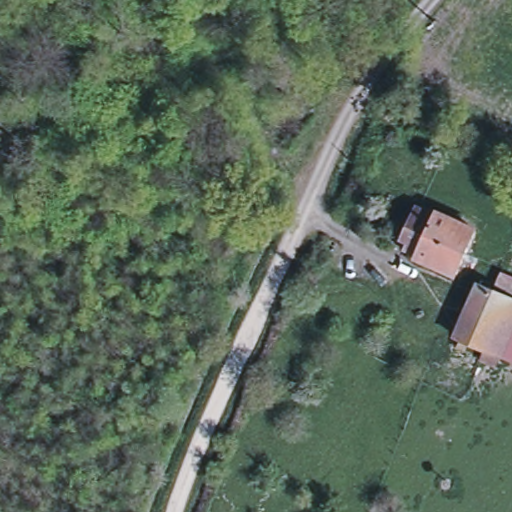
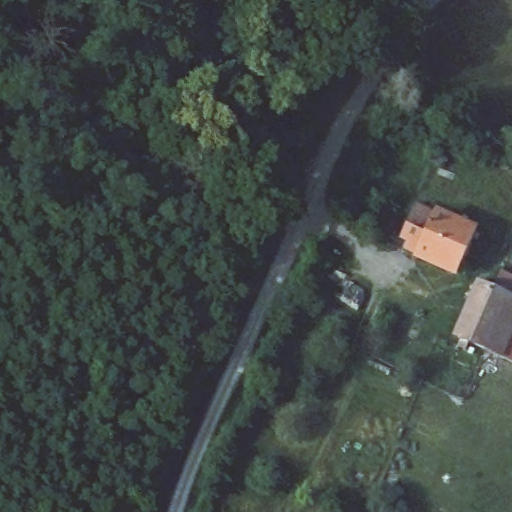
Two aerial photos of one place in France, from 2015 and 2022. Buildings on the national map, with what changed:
unchanged [(400,235),(412,214),(421,217),(426,205),(470,229),(445,273),(412,257),(418,244),(400,235)]
unchanged [(477,346),(505,295),(512,298),(512,365),(477,346)]

